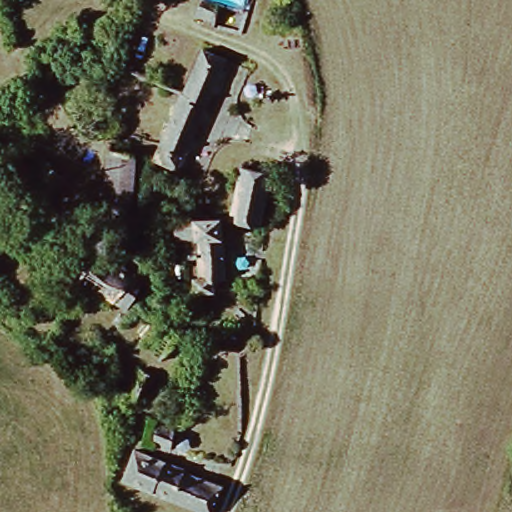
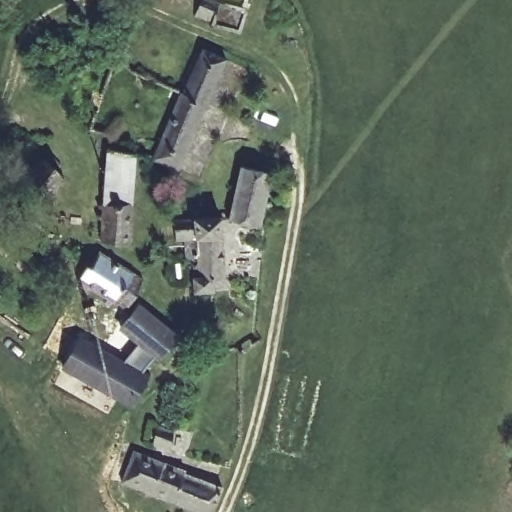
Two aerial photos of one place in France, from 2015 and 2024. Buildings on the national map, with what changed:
unchanged [(200,18),(205,3),(218,7),(213,23),(200,18)]
unchanged [(183,166),(161,156),(210,45),(232,55),(183,166)]
unchanged [(131,154),(128,202),(98,199),(101,152),(131,154)]
unchanged [(40,209),(15,194),(28,172),(53,187),(40,209)]
unchanged [(227,224),(238,172),(267,178),(255,231),(227,224)]
unchanged [(104,244),(105,207),(133,208),(132,245),(104,244)]
unchanged [(195,295),(193,283),(196,282),(195,263),(183,263),(181,244),(167,243),(167,222),(220,220),(224,280),(212,281),(211,293),(195,295)]
unchanged [(133,292),(122,311),(79,283),(91,265),(95,266),(101,256),(140,282),(133,292)]
new [(138,301),(181,335),(159,362),(155,358),(135,342),(116,327),(138,301)]
new [(81,328),(124,357),(135,342),(155,358),(149,372),(152,373),(132,408),(105,395),(58,368),(81,328)]
unchanged [(179,468),(177,473),(214,488),(204,512),(197,512),(119,480),(133,451),(179,468)]

